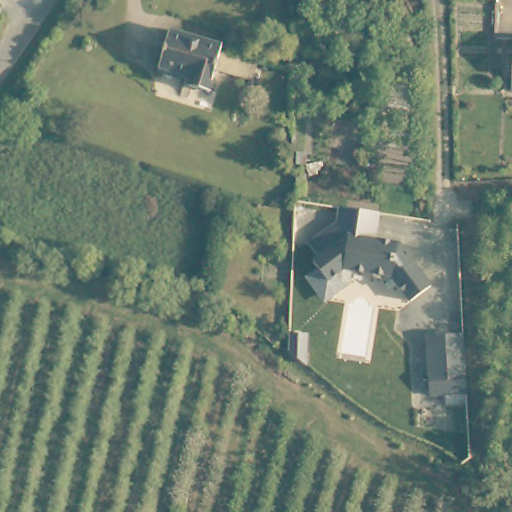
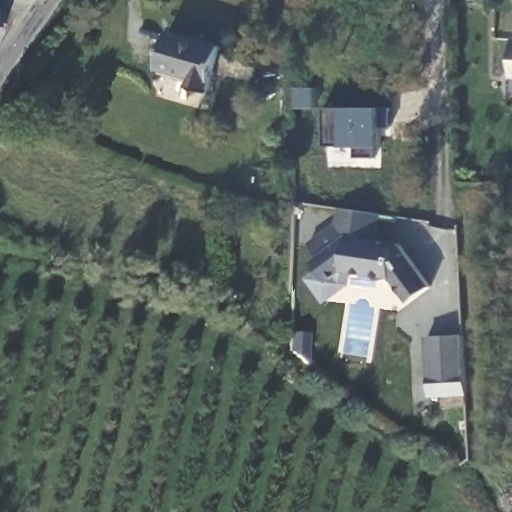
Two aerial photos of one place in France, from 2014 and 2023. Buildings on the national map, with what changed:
unchanged [(188,85),(192,76),(158,65),(169,30),(221,46),(220,50),(257,62),(252,79),(214,69),(208,90),(188,85)]
unchanged [(510,83),(511,43),(512,44),(512,84),(510,83)]
new [(322,105),(390,105),(390,124),(375,124),(374,155),(353,155),(353,144),(322,144),(322,105)]
unchanged [(379,213),(375,239),(401,243),(432,288),(411,303),(391,276),(351,272),(350,285),(323,302),(305,278),(319,269),(314,258),(318,256),(309,240),(337,224),(338,206),(379,213)]
unchanged [(464,333),(467,395),(430,397),(426,336),(464,333)]

